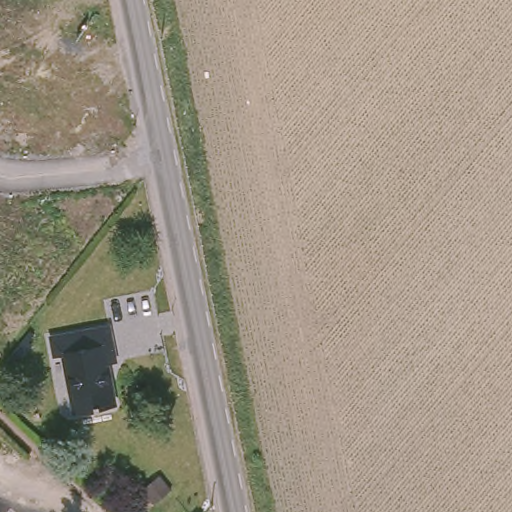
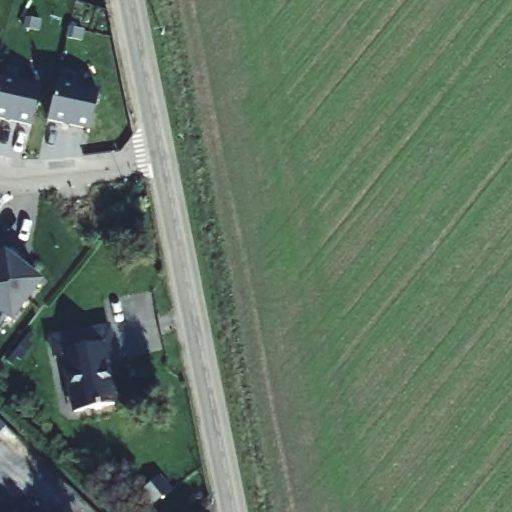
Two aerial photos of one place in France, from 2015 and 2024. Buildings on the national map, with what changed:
new [(41,88),(33,125),(0,118),(0,79),(41,88)]
new [(53,120),(60,83),(102,92),(94,129),(53,120)]
new [(6,252),(11,246),(25,256),(19,263),(44,281),(12,322),(0,313),(0,253),(3,249),(6,252)]
unchanged [(82,420),(69,361),(59,363),(55,346),(113,334),(116,348),(118,351),(121,368),(113,370),(121,412),(82,420)]
unchanged [(197,512),(198,511),(199,512),(197,512)]

